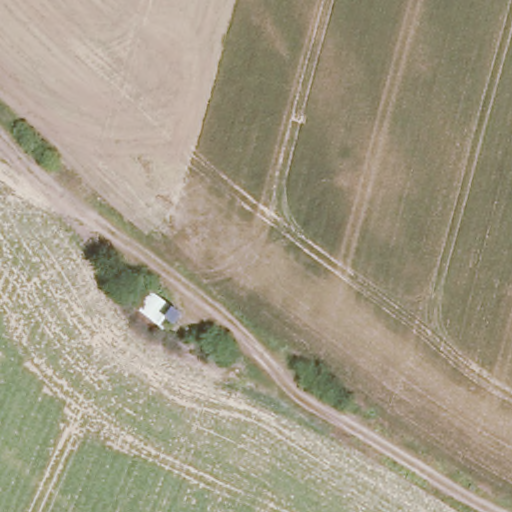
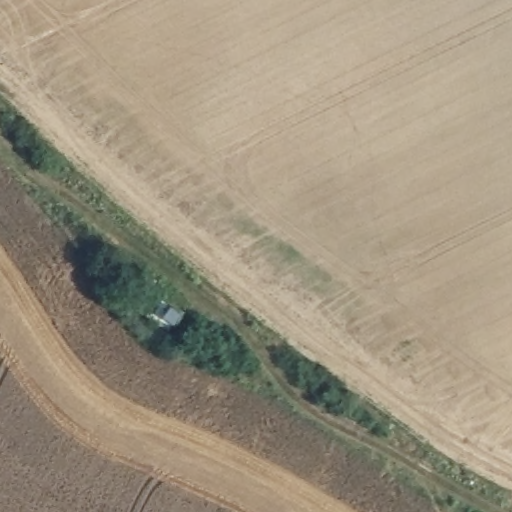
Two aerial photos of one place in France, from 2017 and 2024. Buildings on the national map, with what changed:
unchanged [(146,289),(184,315),(169,338),(129,307),(146,289)]

